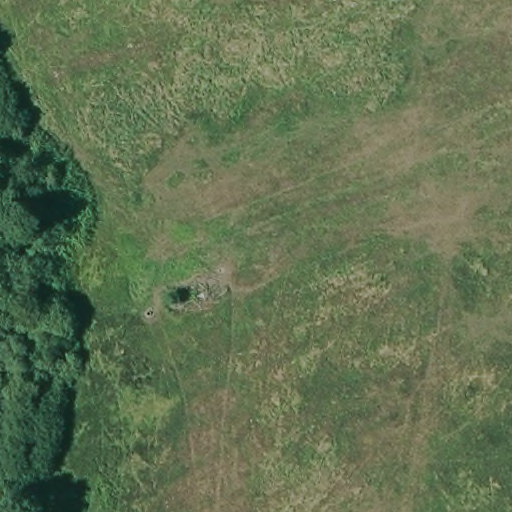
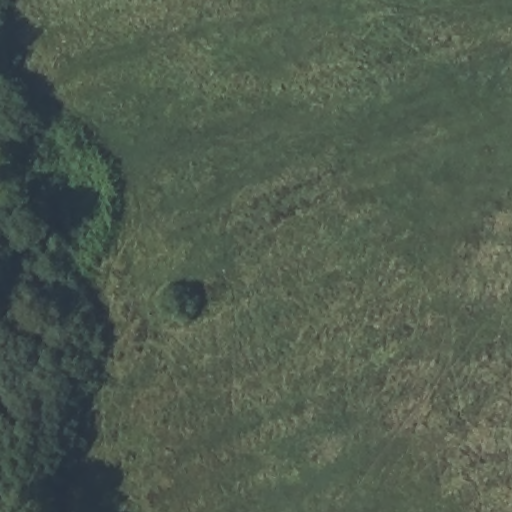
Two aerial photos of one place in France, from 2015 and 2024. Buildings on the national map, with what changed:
unchanged [(163,299),(222,274),(228,297),(170,322),(163,299)]

